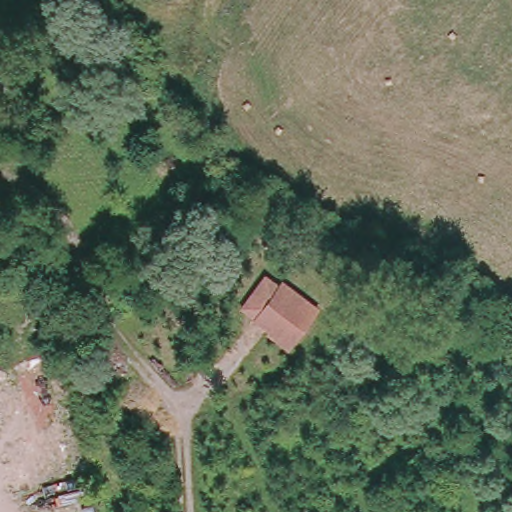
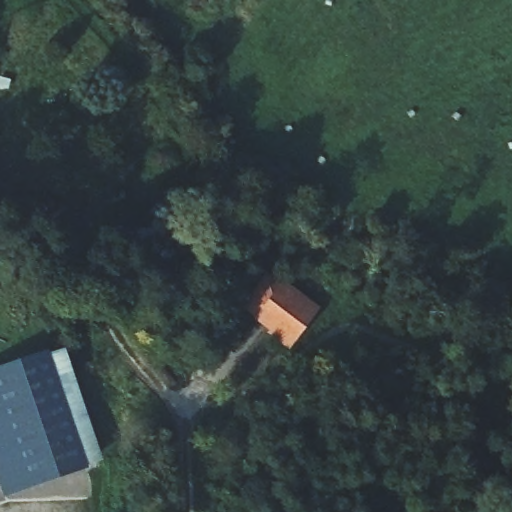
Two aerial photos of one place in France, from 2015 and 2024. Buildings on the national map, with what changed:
new [(290,354),(253,325),(255,323),(242,313),(267,278),(282,288),(284,285),(322,313),(290,354)]
new [(63,352),(98,466),(84,470),(49,356),(63,352)]
new [(84,470),(0,496),(0,371),(49,356),(84,470)]

